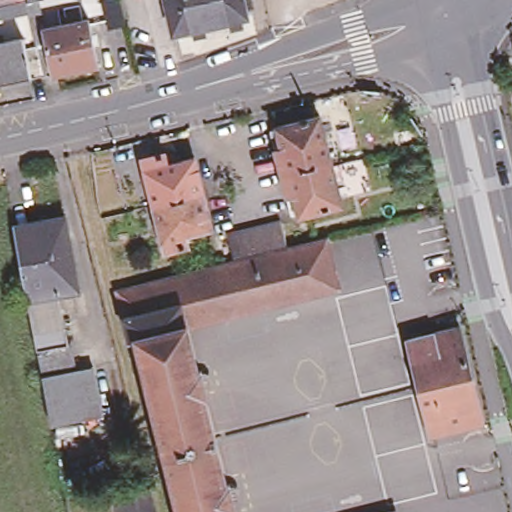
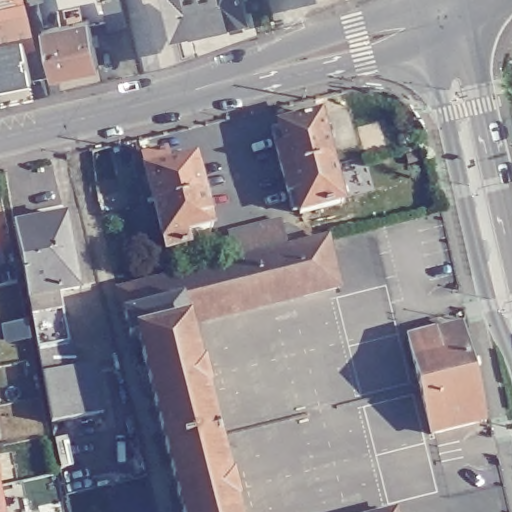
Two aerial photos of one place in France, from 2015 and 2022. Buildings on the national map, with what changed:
unchanged [(60,22),(57,5),(78,0),(82,17),(87,16),(97,61),(52,70),(42,72),(30,75),(0,81),(0,0),(37,0),(42,26),(60,22)]
unchanged [(105,2),(116,0),(123,0),(130,26),(111,30),(105,2)]
unchanged [(172,27),(166,0),(243,0),(245,10),(172,27)]
unchanged [(275,141),(282,139),(277,118),(320,108),(331,152),(282,164),(275,141)]
unchanged [(137,156),(159,151),(162,162),(190,155),(198,190),(149,202),(137,156)]
unchanged [(331,152),(332,158),(342,196),(299,207),(294,186),(287,187),(282,164),(331,152)]
unchanged [(198,190),(207,225),(180,232),(182,242),(160,249),(149,202),(198,190)]
unchanged [(14,226),(66,214),(81,287),(61,291),(28,297),(14,226)]
unchanged [(227,232),(240,228),(254,225),(267,222),(281,218),(287,246),(327,236),(340,284),(189,325),(201,369),(204,368),(209,391),(206,391),(229,482),(231,482),(237,504),(234,505),(235,512),(182,512),(138,336),(131,337),(119,289),(234,260),(227,232)]
unchanged [(28,297),(61,291),(74,367),(43,373),(28,297)]
unchanged [(404,332),(460,318),(490,417),(430,434),(404,332)]
unchanged [(74,367),(92,363),(100,416),(52,425),(43,373),(74,367)]
new [(0,481),(6,512),(0,512),(0,481)]
unchanged [(397,510),(397,512),(389,512),(397,510)]

